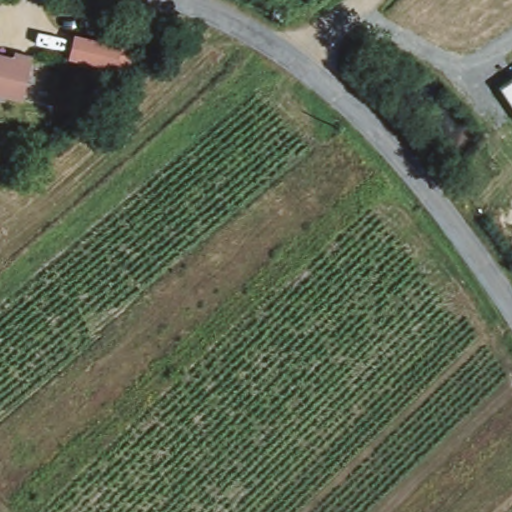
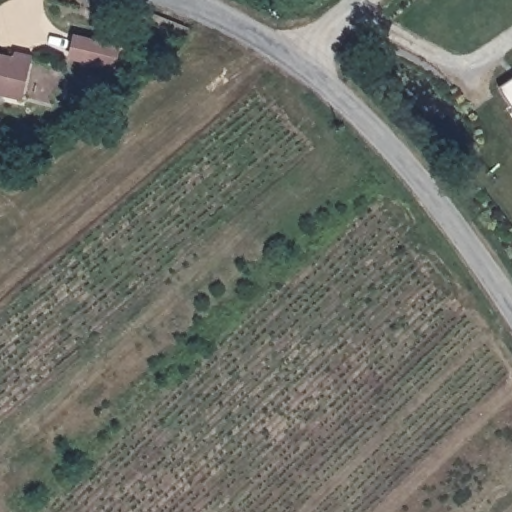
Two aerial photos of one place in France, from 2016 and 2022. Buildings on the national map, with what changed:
unchanged [(110,72),(66,64),(70,42),(114,50),(110,72)]
unchanged [(16,51),(37,55),(29,100),(0,94),(0,54),(16,57),(16,51)]
unchanged [(499,87),(512,79),(512,108),(499,87)]

